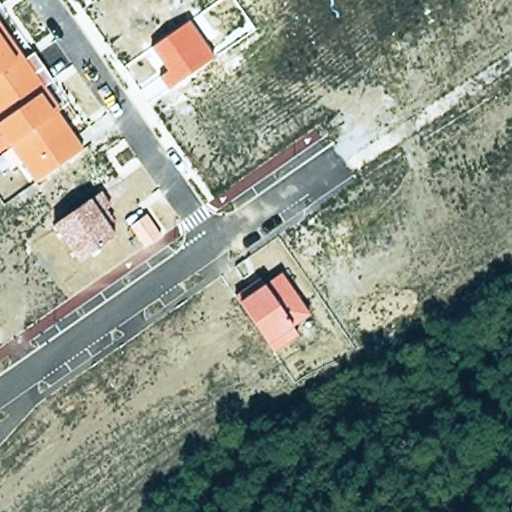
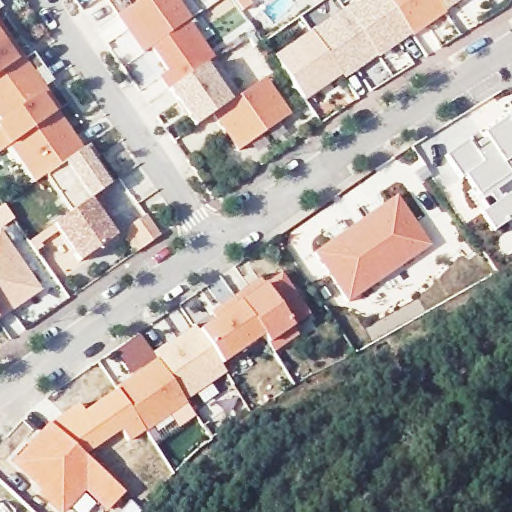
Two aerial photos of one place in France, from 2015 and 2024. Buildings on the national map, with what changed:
new [(190,21),(152,48),(141,54),(115,16),(139,0),(180,0),(177,3),(190,21)]
new [(386,0),(410,35),(377,58),(376,56),(343,10),(357,0),(386,0)]
new [(444,14),(411,36),(410,35),(386,0),(434,0),(443,13),(444,14)]
new [(434,0),(461,0),(443,13),(434,0)]
unchanged [(5,11),(0,13),(0,3),(5,11)]
new [(343,10),(376,56),(343,79),(340,74),(310,32),(343,10)]
unchanged [(27,58),(33,52),(56,86),(47,90),(86,149),(84,151),(47,177),(35,185),(11,145),(0,152),(0,18),(27,58)]
unchanged [(215,59),(205,66),(168,91),(159,76),(165,71),(152,48),(190,21),(215,59)]
new [(310,32),(340,74),(302,100),(273,59),(310,32)]
new [(168,91),(205,66),(230,103),(211,116),(194,129),(168,91)]
new [(290,114),(236,153),(211,116),(230,103),(265,78),(290,114)]
new [(510,174),(477,196),(463,178),(460,179),(444,156),(466,139),(476,151),(487,143),(482,134),(506,117),(512,125),(512,158),(503,165),(510,174)]
new [(103,191),(102,190),(70,212),(47,177),(84,151),(108,187),(103,191)]
unchanged [(70,212),(102,190),(103,191),(115,207),(109,212),(120,227),(112,231),(115,236),(75,263),(51,225),(70,212)]
new [(431,247),(350,305),(314,256),(397,198),(431,247)]
new [(145,215),(159,236),(143,247),(129,226),(145,215)]
new [(39,290),(0,316),(0,232),(39,290)]
unchanged [(264,284),(282,271),(310,314),(292,327),(298,333),(273,352),(263,336),(235,296),(233,294),(257,277),(264,284)]
new [(215,320),(211,314),(235,296),(263,336),(220,365),(197,332),(215,320)]
new [(186,402),(152,355),(165,344),(166,346),(193,327),(197,332),(220,365),(225,373),(186,402)]
new [(186,402),(185,403),(195,416),(178,427),(170,415),(145,433),(115,388),(155,360),(186,402)]
new [(130,499),(142,511),(141,512),(120,512),(130,499)]

